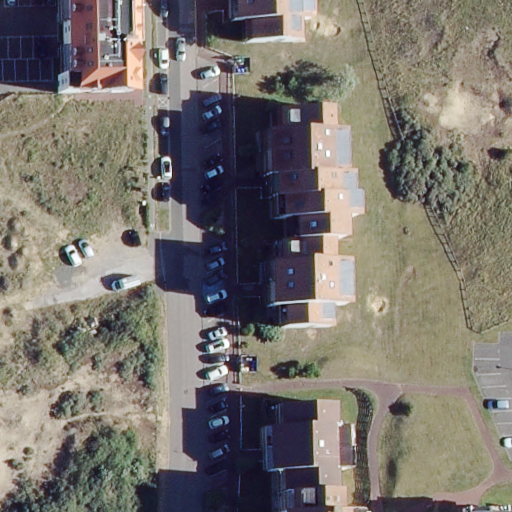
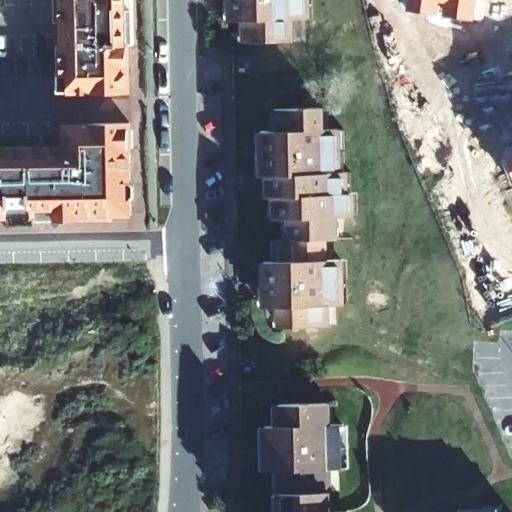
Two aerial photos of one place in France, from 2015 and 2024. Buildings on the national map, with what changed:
unchanged [(59,95),(58,0),(127,0),(129,96),(59,95)]
unchanged [(288,19),(289,39),(242,39),(242,21),(228,21),(227,0),(301,0),(301,19),(288,19)]
new [(445,14),(448,2),(442,0),(439,13),(408,8),(410,0),(478,0),(476,19),(445,14)]
unchanged [(295,235),(295,215),(283,215),(283,193),(274,193),(273,155),(266,155),(266,132),(282,131),(282,107),(325,106),(325,131),(340,131),(341,170),(347,171),(347,190),(357,191),(357,214),(341,215),(341,234),(331,234),(295,235)]
new [(66,151),(64,129),(126,128),(127,221),(0,220),(0,151),(66,151)]
new [(512,153),(512,169),(507,156),(512,153)]
unchanged [(331,258),(345,259),(346,302),(331,302),(331,321),(284,321),(285,302),(271,302),(270,258),(283,258),(283,235),(295,235),(331,234),(331,258)]
unchanged [(329,407),(328,429),(340,429),(339,474),(327,475),(327,512),(281,512),(282,475),(268,475),(268,429),(282,429),(283,408),(329,407)]

